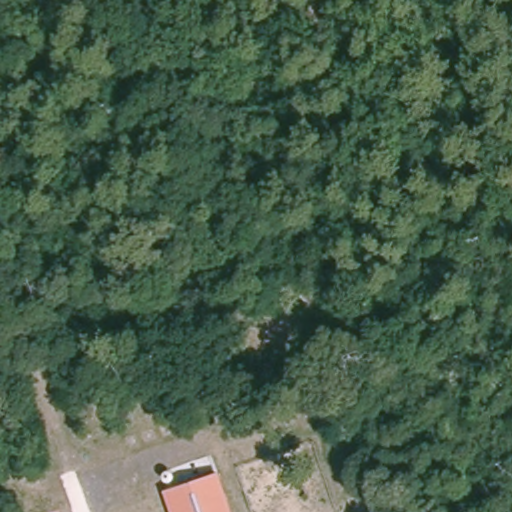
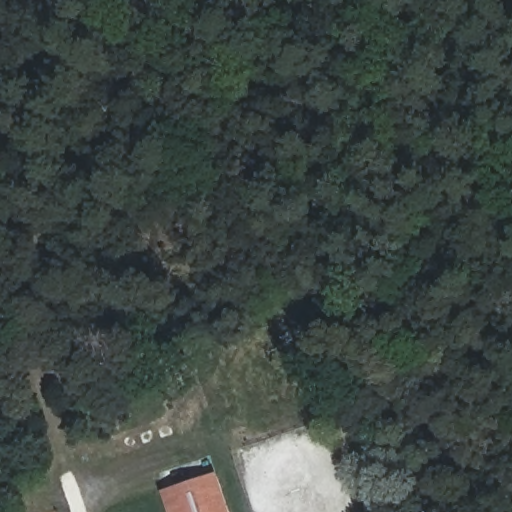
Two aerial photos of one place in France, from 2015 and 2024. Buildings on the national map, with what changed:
unchanged [(164,491),(167,489),(163,474),(166,470),(171,469),(174,473),(179,487),(220,474),(233,512),(172,512),(164,491)]

